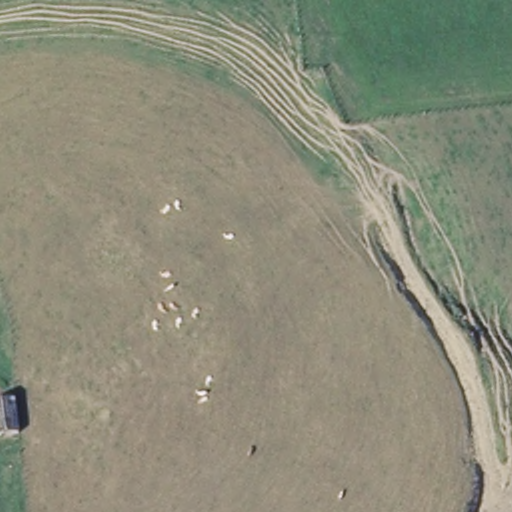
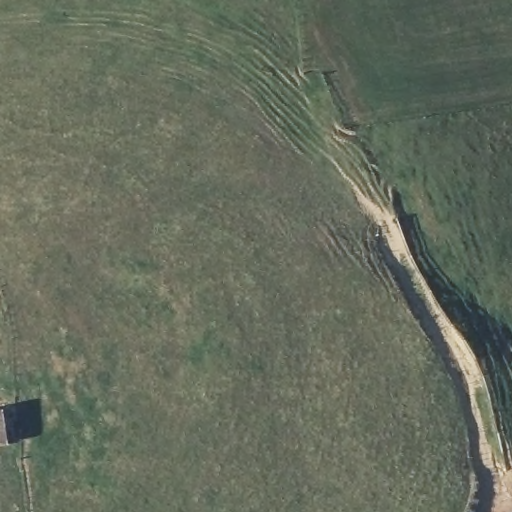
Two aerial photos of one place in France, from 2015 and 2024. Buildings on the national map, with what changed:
unchanged [(27,443),(0,447),(0,411),(22,408),(27,443)]

